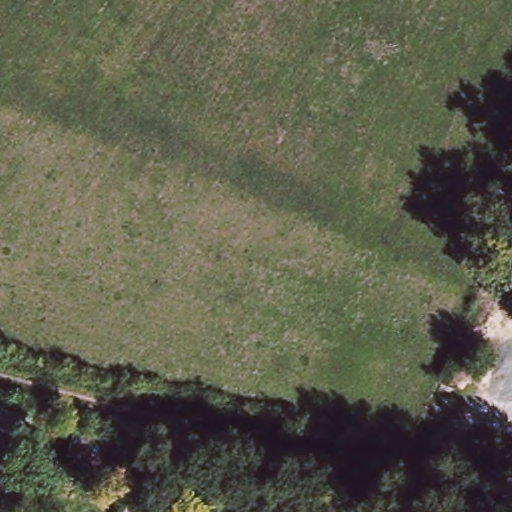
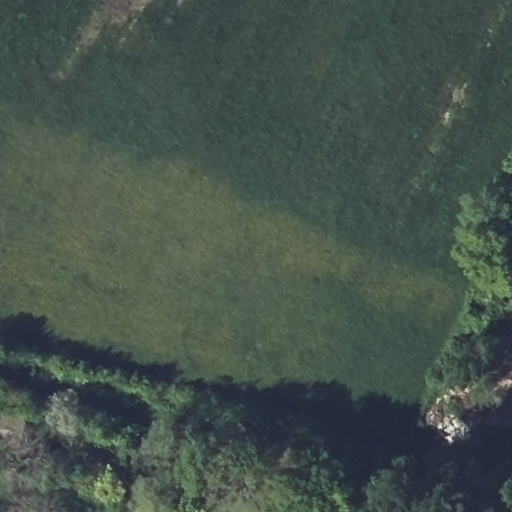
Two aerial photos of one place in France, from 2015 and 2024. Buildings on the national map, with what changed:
unchanged [(18,454),(0,450),(0,409),(28,415),(18,454)]
unchanged [(80,447),(106,456),(100,472),(75,464),(80,447)]

